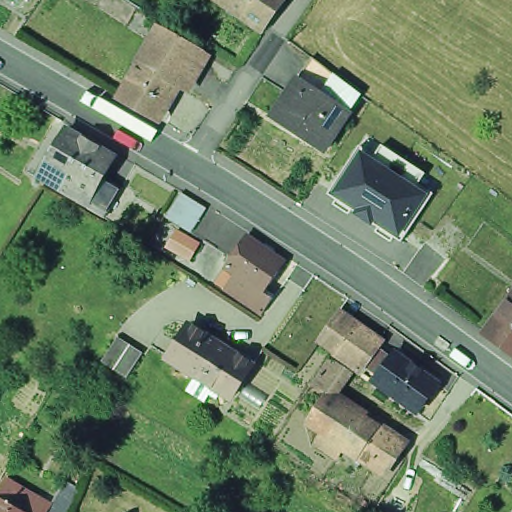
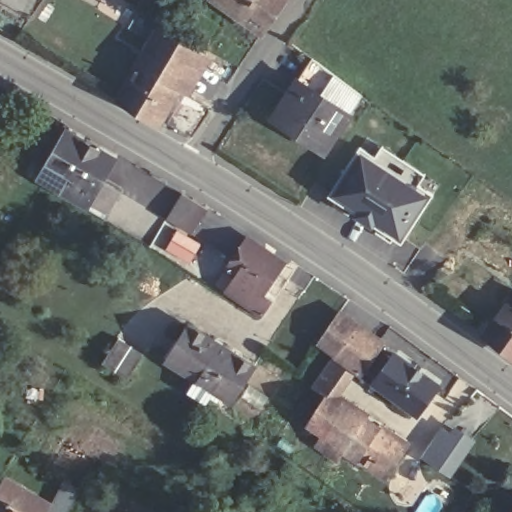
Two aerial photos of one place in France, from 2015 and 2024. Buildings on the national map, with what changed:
unchanged [(257,35),(206,0),(282,0),(257,35)]
unchanged [(122,59),(143,22),(170,37),(147,74),(122,59)]
unchanged [(170,37),(209,58),(187,97),(147,74),(170,37)]
unchanged [(339,111),(290,80),(304,58),(315,67),(350,92),(339,111)]
unchanged [(168,130),(128,107),(147,74),(187,97),(168,130)]
unchanged [(287,131),(265,118),(290,80),(339,111),(344,114),(322,146),(319,152),(287,131)]
unchanged [(32,167),(60,120),(107,147),(95,167),(115,179),(96,209),(93,207),(77,197),(79,194),(32,167)]
unchanged [(353,218),(385,172),(420,198),(417,204),(388,244),(353,218)]
unchanged [(183,194),(208,209),(193,234),(205,242),(192,264),(170,252),(182,230),(167,219),(183,194)]
unchanged [(417,204),(442,222),(415,262),(388,244),(417,204)]
unchanged [(442,222),(466,239),(437,279),(415,262),(442,222)]
unchanged [(221,264),(243,234),(278,258),(258,288),(265,293),(254,309),(220,285),(229,270),(221,264)]
unchanged [(509,284),(512,286),(512,354),(477,328),(509,284)]
unchanged [(333,350),(316,339),(335,311),(352,323),(356,318),(378,335),(356,366),(333,350)]
unchanged [(191,385),(198,373),(170,354),(192,320),(257,360),(235,395),(217,384),(208,397),(191,385)]
unchanged [(128,378),(103,362),(114,346),(118,339),(143,355),(140,361),(128,378)]
unchanged [(385,348),(391,352),(394,348),(436,379),(416,407),(373,377),(378,369),(373,365),(385,348)]
unchanged [(312,381),(330,355),(342,363),(325,390),(312,381)]
unchanged [(405,437),(383,470),(343,443),(337,454),(317,440),(323,430),(320,427),(307,419),(325,390),(338,399),(361,415),(376,425),(378,420),(405,437)]
new [(440,427),(450,435),(455,429),(470,439),(446,473),(420,456),(440,427)]
unchanged [(7,473),(24,482),(52,497),(65,472),(82,480),(75,493),(68,506),(65,512),(49,512),(45,510),(44,512),(0,512),(0,485),(7,473)]

